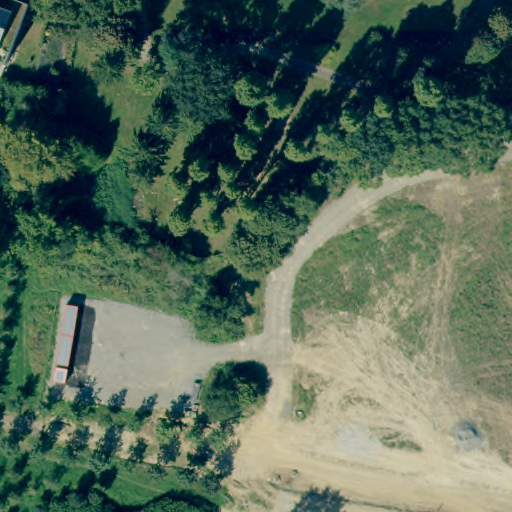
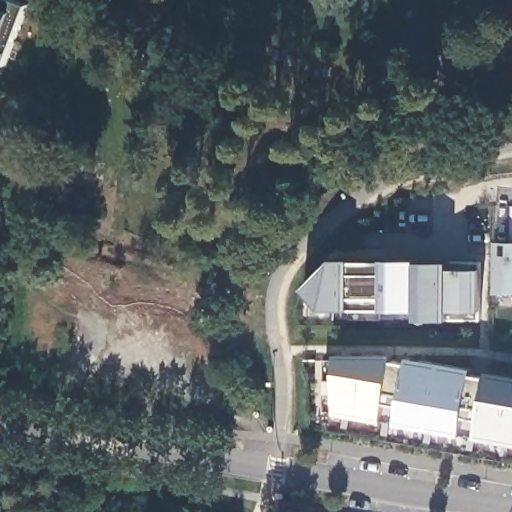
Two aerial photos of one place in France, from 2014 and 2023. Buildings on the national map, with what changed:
unchanged [(7,61),(0,59),(0,0),(28,0),(31,1),(7,61)]
new [(512,206),(512,293),(494,292),(496,205),(512,206)]
new [(335,260),(351,261),(417,260),(416,263),(450,261),(449,269),(482,269),(482,312),(449,312),(450,321),(418,321),(418,310),(350,310),(323,310),(303,290),(335,260)]
new [(337,355),(393,355),(512,378),(512,445),(337,413),(325,411),(327,360),(337,355)]

